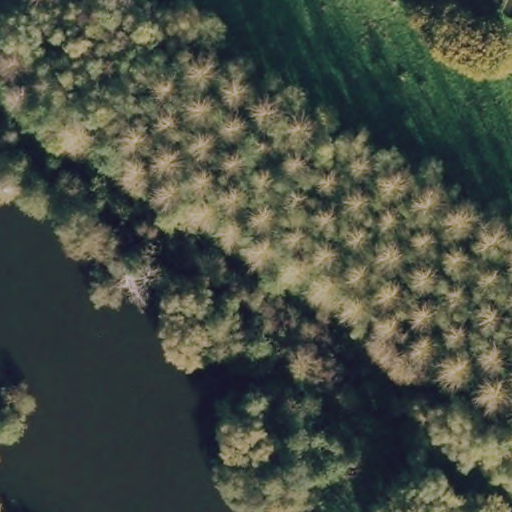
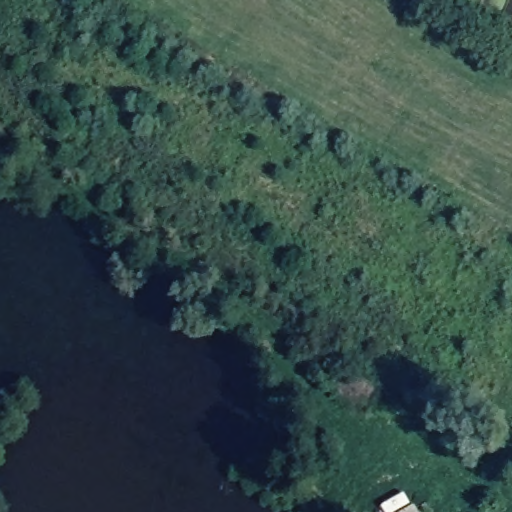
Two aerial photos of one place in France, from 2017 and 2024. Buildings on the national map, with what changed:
unchanged [(412,512),(405,512),(410,509),(412,512)]

